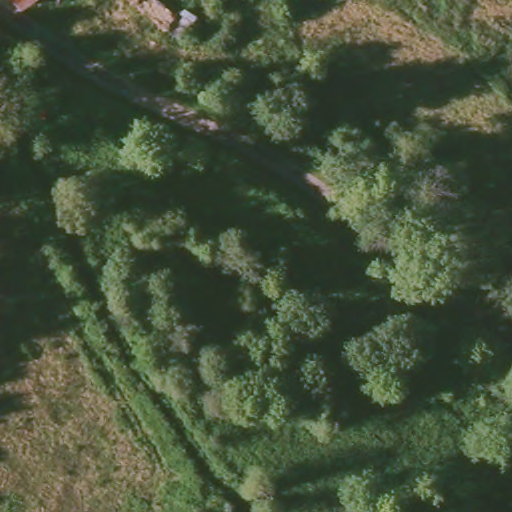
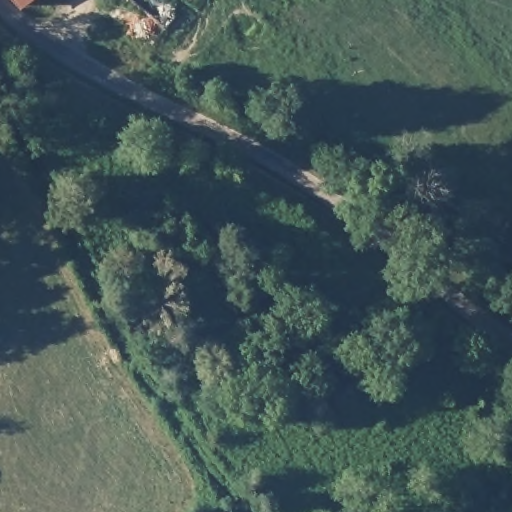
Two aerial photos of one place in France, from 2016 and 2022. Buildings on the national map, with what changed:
unchanged [(13,16),(9,15),(0,5),(0,0),(33,0),(13,16)]

